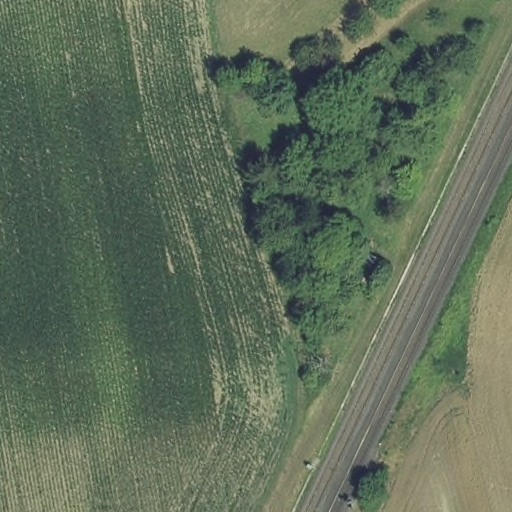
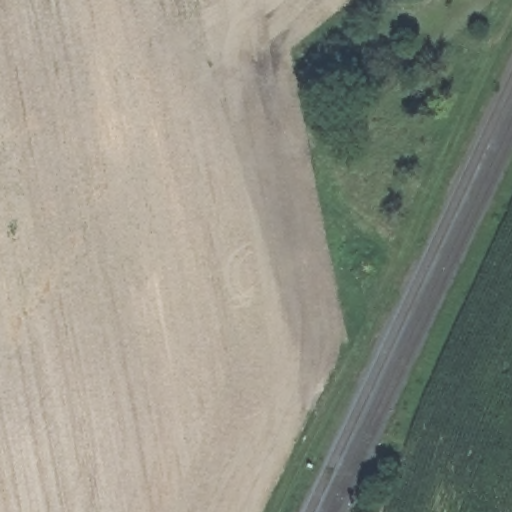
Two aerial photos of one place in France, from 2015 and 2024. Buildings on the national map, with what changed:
unchanged [(352,282),(363,256),(386,263),(375,292),(352,282)]

